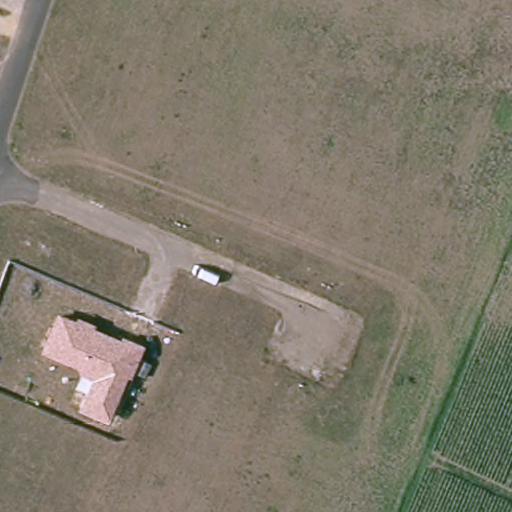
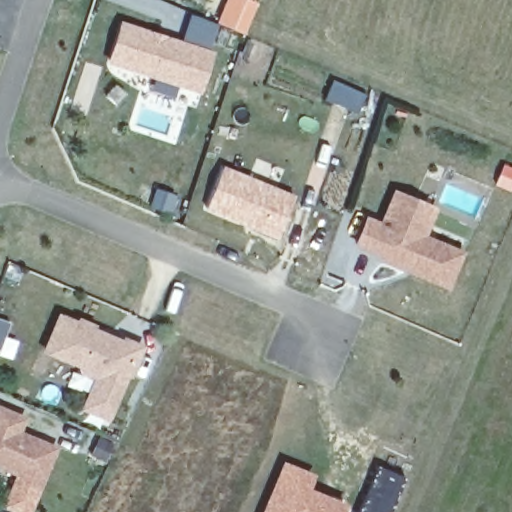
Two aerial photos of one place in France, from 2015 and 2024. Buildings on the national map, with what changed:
new [(225,0),(253,0),(258,2),(245,35),(216,24),(225,0)]
new [(106,64),(120,20),(215,51),(200,95),(106,64)]
new [(205,211),(223,167),(294,196),(277,239),(205,211)]
new [(427,236),(465,251),(448,292),(380,262),(382,258),(353,246),(365,216),(380,222),(392,189),(438,209),(427,236)]
unchanged [(59,313),(76,320),(79,316),(97,324),(96,328),(122,339),(123,336),(147,346),(133,381),(128,378),(110,422),(83,408),(95,380),(80,374),(78,366),(41,353),(59,313)]
new [(23,420),(17,434),(54,450),(39,485),(0,468),(0,410),(23,420)]
new [(318,474),(312,489),(345,503),(341,512),(260,512),(281,460),(318,474)]
new [(378,480),(376,484),(398,491),(389,512),(358,512),(373,477),(378,480)]

